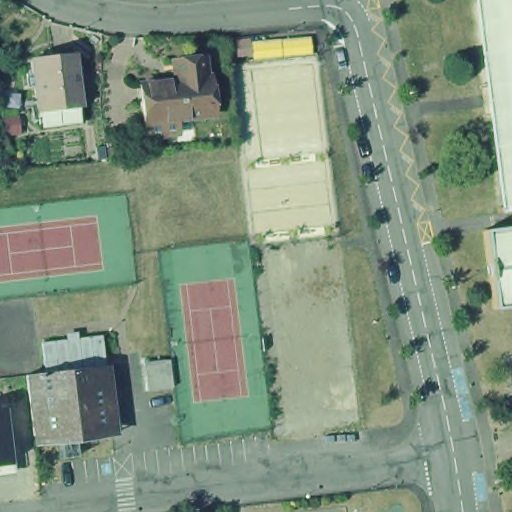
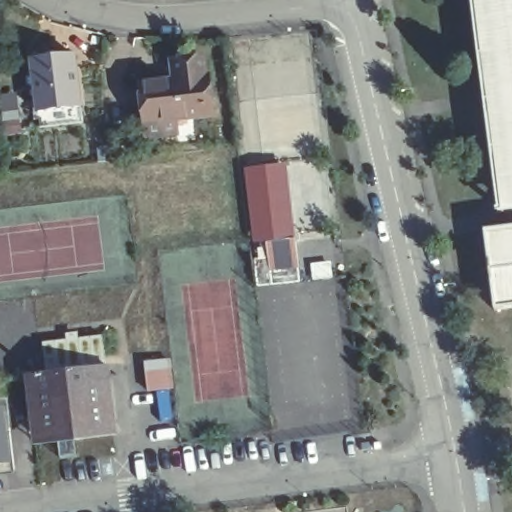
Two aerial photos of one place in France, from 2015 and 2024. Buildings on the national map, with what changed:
unchanged [(488,0),(498,85),(484,86),(473,0),(488,0)]
unchanged [(502,117),(487,119),(484,86),(498,85),(488,0),(512,0),(512,202),(502,117)]
unchanged [(39,121),(38,106),(32,55),(74,50),(79,101),(81,117),(39,121)]
unchanged [(152,133),(151,119),(146,82),(180,79),(178,57),(188,57),(208,55),(211,75),(213,75),(218,112),(181,116),(182,130),(152,133)]
unchanged [(499,212),(487,119),(502,117),(512,202),(512,211),(499,212)]
new [(264,245),(253,245),(244,170),(286,165),(294,242),(264,245)]
unchanged [(493,310),(484,231),(512,228),(512,307),(493,310)]
new [(300,283),(258,287),(254,260),(258,258),(257,249),(264,248),(264,245),(294,242),(299,268),(300,283)]
unchanged [(43,364),(103,357),(106,386),(46,393),(43,364)]
unchanged [(170,362),(173,388),(148,391),(145,364),(170,362)]
unchanged [(114,447),(36,456),(28,397),(106,387),(114,447)]
unchanged [(9,472),(0,473),(0,412),(2,412),(9,472)]

